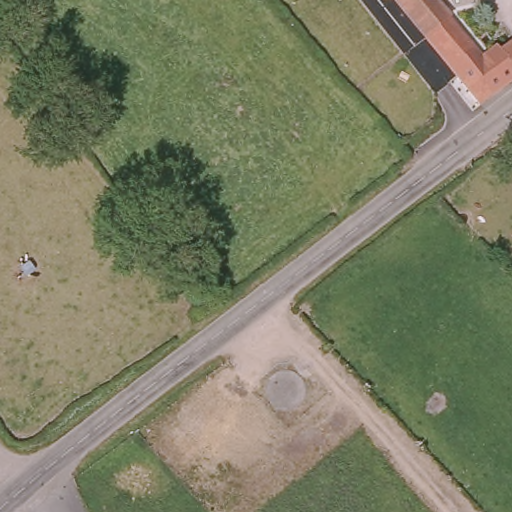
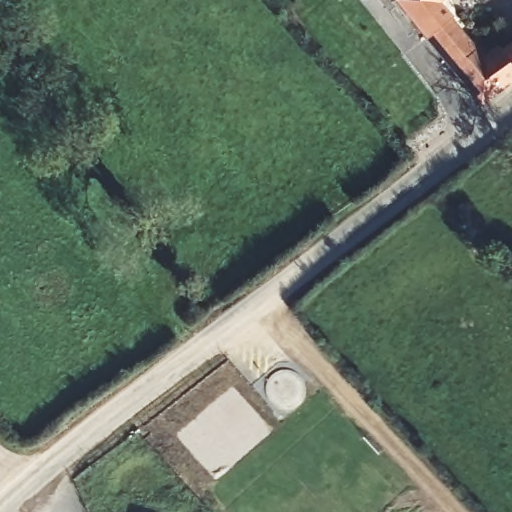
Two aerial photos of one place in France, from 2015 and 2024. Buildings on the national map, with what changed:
unchanged [(459,79),(420,33),(393,0),(450,0),(438,10),(483,66),(498,55),(490,46),(512,28),(512,89),(485,110),(459,79)]

